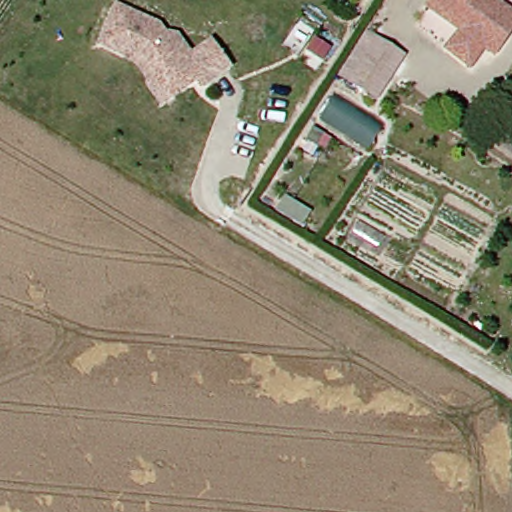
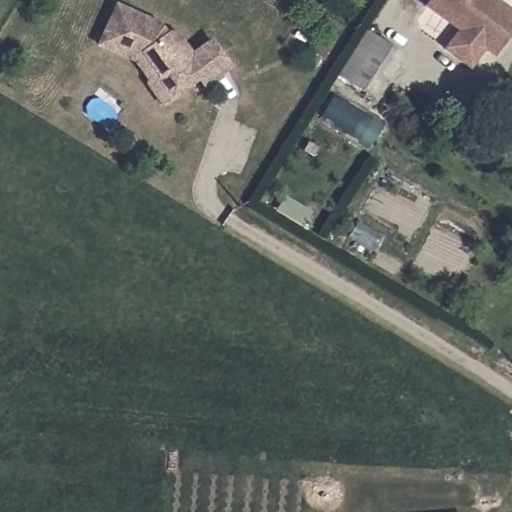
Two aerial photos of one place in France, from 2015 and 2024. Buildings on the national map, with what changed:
unchanged [(487,41),(474,62),(442,43),(451,25),(427,6),(431,0),(504,0),(508,3),(512,6),(512,24),(499,48),(487,41)]
unchanged [(229,58),(207,75),(203,68),(175,88),(139,50),(136,53),(127,47),(124,54),(100,49),(110,6),(155,17),(163,28),(174,27),(191,49),(208,32),(229,58)]
unchanged [(364,95),(337,79),(364,36),(384,47),(391,51),(371,84),(364,95)]
unchanged [(383,124),(368,148),(319,119),(335,92),(383,124)]

